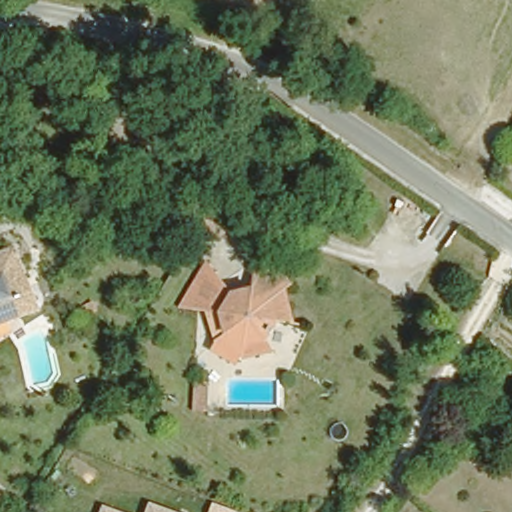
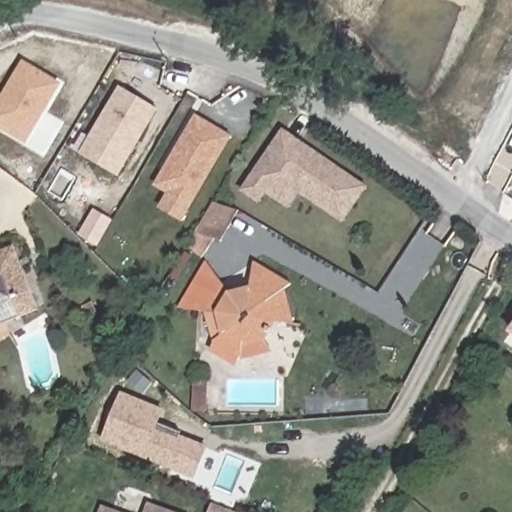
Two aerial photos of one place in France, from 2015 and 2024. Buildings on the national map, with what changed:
new [(26,145),(0,129),(0,96),(21,59),(61,84),(26,145)]
new [(120,86),(159,109),(120,178),(80,154),(120,86)]
new [(194,114),(232,136),(181,223),(157,208),(165,194),(153,186),(194,114)]
new [(333,166),(342,173),(365,189),(341,222),(298,190),(287,205),(265,189),(257,199),(242,188),(284,130),(333,166)]
new [(214,201),(235,214),(218,243),(196,230),(214,201)]
unchanged [(0,318),(0,249),(10,245),(34,304),(0,318)]
unchanged [(202,260),(227,288),(248,283),(252,254),(287,276),(282,287),(287,315),(276,314),(268,315),(258,331),(244,337),(241,344),(214,333),(224,320),(218,305),(178,300),(202,260)]
new [(218,305),(224,320),(214,333),(241,344),(244,337),(258,331),(268,315),(276,314),(287,315),(282,287),(285,280),(291,283),(285,289),(294,324),(276,322),(265,340),(273,352),(242,359),(239,358),(236,366),(208,352),(213,342),(204,312),(178,309),(182,301),(218,305)]
new [(511,331),(512,330),(512,332),(511,331)]
new [(99,441),(120,391),(164,409),(157,427),(208,448),(195,480),(99,441)]
unchanged [(148,502),(179,512),(144,512),(148,502)]
unchanged [(101,506),(122,512),(99,512),(101,506)]

